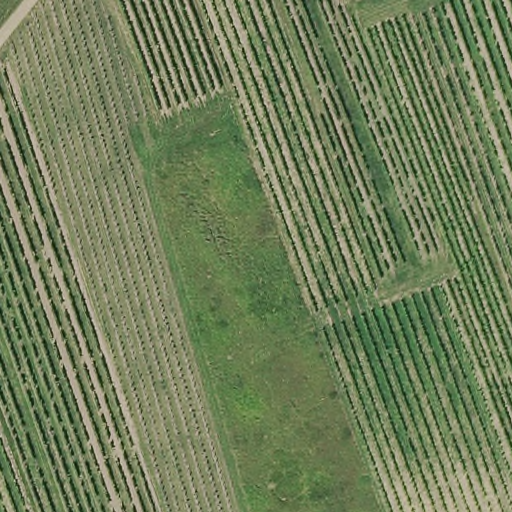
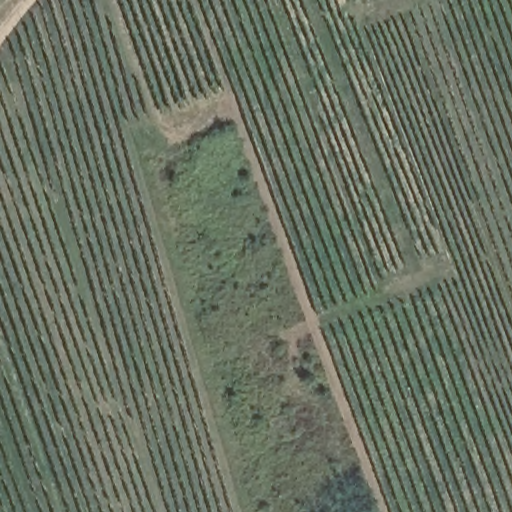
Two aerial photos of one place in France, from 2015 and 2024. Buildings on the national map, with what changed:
[]

